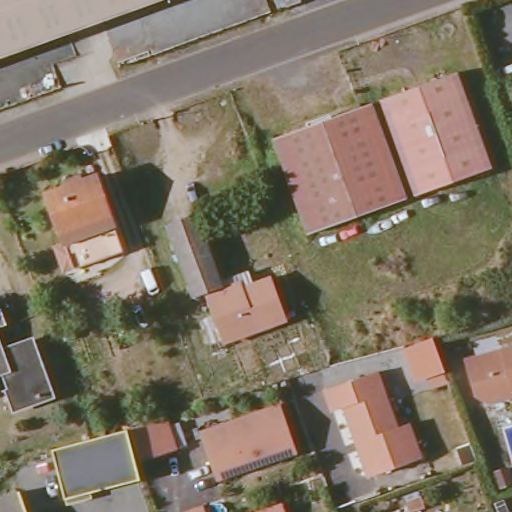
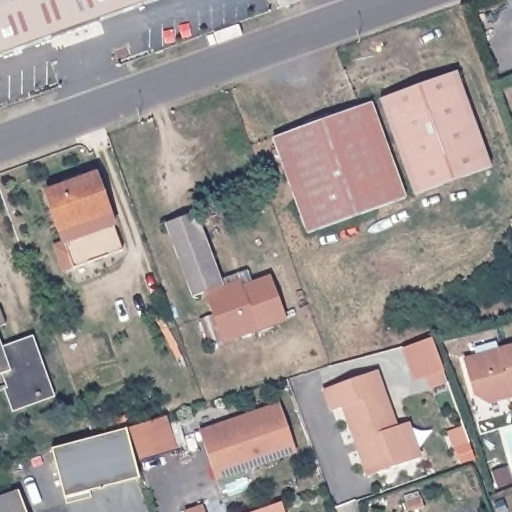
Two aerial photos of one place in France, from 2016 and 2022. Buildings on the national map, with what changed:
unchanged [(0,56),(0,0),(152,0),(0,56)]
unchanged [(276,5),(274,0),(290,0),(276,5)]
unchanged [(417,195),(381,98),(458,71),(494,168),(417,195)]
unchanged [(310,232),(274,136),(370,102),(407,198),(310,232)]
unchanged [(73,266),(46,191),(95,173),(123,248),(73,266)]
unchanged [(272,277),(287,319),(222,342),(204,292),(193,296),(166,223),(195,213),(225,294),(272,277)]
unchanged [(0,327),(0,309),(7,325),(0,327)]
unchanged [(5,374),(0,376),(0,332),(7,350),(15,348),(31,342),(35,351),(50,393),(17,406),(5,374)]
unchanged [(405,349),(434,339),(446,371),(449,383),(431,390),(427,380),(416,383),(405,349)]
unchanged [(487,402),(472,394),(462,359),(512,345),(512,388),(509,388),(510,395),(505,397),(487,402)]
unchanged [(372,474),(347,405),(337,409),(330,388),(382,370),(401,427),(412,423),(425,456),(413,460),(372,474)]
unchanged [(200,434),(280,405),(297,452),(260,465),(217,481),(212,468),(200,434)]
unchanged [(142,479),(92,492),(93,499),(70,506),(67,498),(55,449),(127,430),(168,416),(179,450),(138,463),(142,479)]
unchanged [(496,486),(492,472),(507,468),(511,482),(496,486)]
unchanged [(25,512),(0,512),(0,500),(18,494),(25,512)]
unchanged [(410,511),(407,500),(421,495),(425,506),(410,511)]
unchanged [(287,512),(250,512),(284,501),(287,512)]

